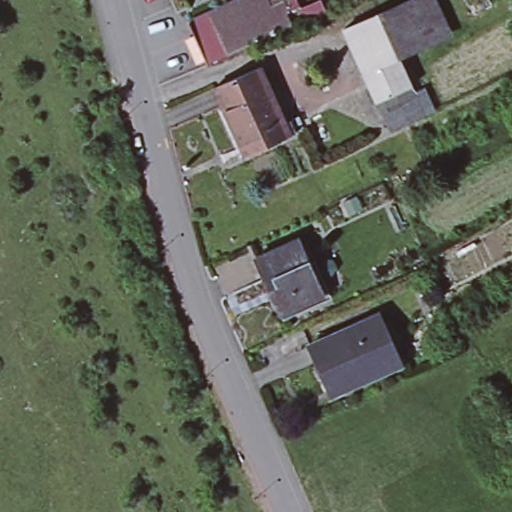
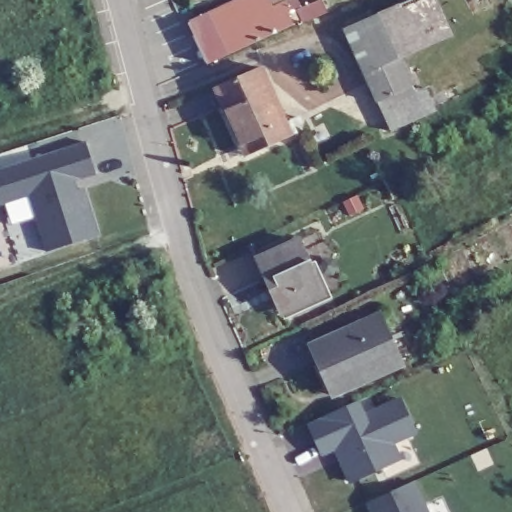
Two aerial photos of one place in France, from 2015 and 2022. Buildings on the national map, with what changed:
unchanged [(207,56),(190,18),(189,15),(222,0),(297,0),(303,13),(207,56)]
unchanged [(377,98),(372,87),(355,46),(345,23),(374,10),(379,8),(394,0),(438,0),(456,34),(402,60),(407,71),(412,82),(424,109),(390,126),(377,98)]
unchanged [(215,86),(260,66),(270,90),(226,110),(215,86)]
unchanged [(254,152),(252,149),(249,141),(242,144),(226,110),(270,90),(289,131),(291,135),(254,152)]
new [(0,204),(0,170),(86,142),(95,175),(81,179),(99,235),(45,252),(27,197),(0,204)]
unchanged [(297,240),(322,293),(283,311),(272,287),(268,289),(255,259),(297,240)]
unchanged [(332,393),(310,342),(375,314),(378,313),(401,363),(398,364),(332,393)]
new [(361,402),(365,413),(401,398),(417,435),(395,444),(402,461),(348,485),(335,453),(322,459),(307,426),(361,402)]
new [(415,481),(429,512),(372,512),(367,502),(415,481)]

